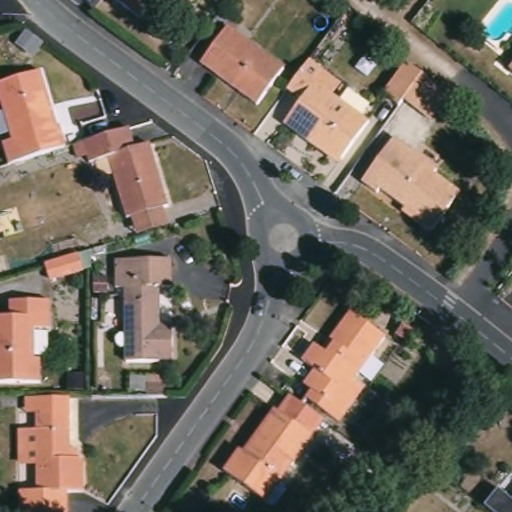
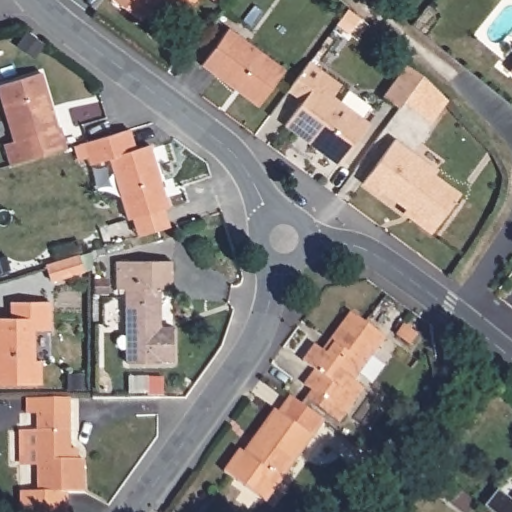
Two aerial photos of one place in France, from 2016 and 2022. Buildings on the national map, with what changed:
unchanged [(116,0),(155,0),(139,20),(116,0)]
unchanged [(166,0),(197,0),(184,16),(166,0)]
unchanged [(279,72),(252,104),(202,61),(229,29),(279,72)]
unchanged [(503,71),(512,60),(512,79),(503,71)]
unchanged [(417,117),(397,100),(395,103),(379,90),(402,62),(417,75),(437,93),(417,117)]
unchanged [(287,93),(312,64),(327,76),(320,85),(372,131),(345,163),(327,148),(325,151),(290,121),(303,106),(287,93)]
unchanged [(42,69),(60,126),(64,125),(71,146),(15,163),(9,143),(17,140),(0,81),(42,69)]
unchanged [(140,240),(134,221),(128,223),(109,160),(93,165),(91,158),(80,161),(75,144),(86,141),(122,130),(132,126),(139,152),(150,149),(169,210),(162,212),(169,231),(140,240)]
unchanged [(435,175),(432,178),(454,197),(423,233),(405,217),(409,213),(381,188),(376,194),(364,184),(398,143),(435,175)]
unchanged [(77,258),(82,274),(50,284),(46,268),(77,258)]
unchanged [(129,348),(128,348),(127,348),(127,349),(126,349),(126,348),(125,348),(124,348),(123,348),(122,347),(122,346),(121,346),(121,345),(120,344),(120,343),(120,342),(120,341),(120,340),(120,339),(120,338),(121,338),(121,337),(122,336),(122,335),(123,335),(124,335),(125,335),(126,334),(127,334),(128,335),(129,335),(130,286),(124,286),(124,260),(176,261),(175,289),(164,289),(162,329),(177,330),(177,364),(161,364),(161,368),(128,367),(129,348)]
unchanged [(9,298),(49,298),(49,328),(34,328),(34,357),(42,358),(42,381),(0,382),(0,316),(9,316),(9,298)]
unchanged [(326,355),(353,314),(387,338),(357,384),(366,389),(348,415),(307,387),(318,372),(306,364),(317,348),(326,355)]
unchanged [(257,499),(224,477),(240,453),(243,455),(272,412),(276,415),(286,400),(321,424),(281,484),(267,506),(257,499)]
unchanged [(33,404),(68,403),(68,419),(69,462),(82,462),(83,493),(68,493),(68,512),(17,512),(17,494),(35,494),(35,469),(21,470),(20,435),(34,435),(34,419),(33,404)]
unchanged [(508,502),(512,497),(512,505),(508,502)]

